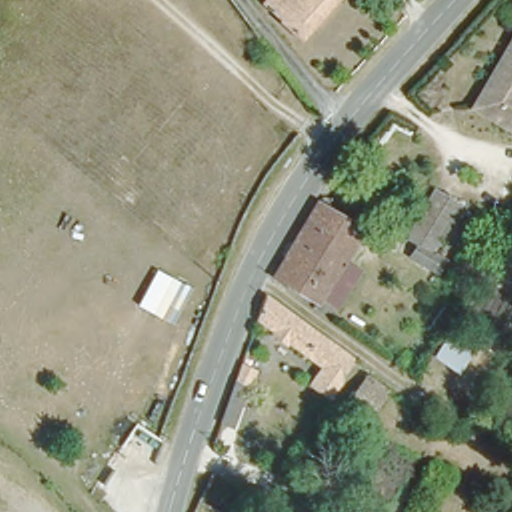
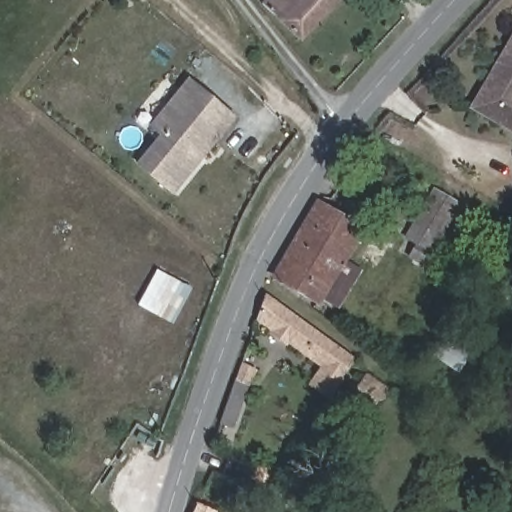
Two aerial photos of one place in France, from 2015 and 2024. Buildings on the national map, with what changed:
unchanged [(297,30),(266,0),(325,0),(310,16),(297,30)]
unchanged [(511,20),(512,21),(512,132),(465,105),(511,20)]
new [(148,125),(187,76),(237,116),(171,195),(134,165),(159,135),(148,125)]
unchanged [(458,250),(448,265),(418,244),(426,232),(420,228),(432,210),(443,195),(467,210),(457,225),(445,241),(458,250)]
unchanged [(332,210),(374,234),(330,305),(287,278),(332,210)]
unchanged [(372,262),(383,270),(370,288),(359,280),(372,262)]
new [(172,326),(136,305),(156,269),(192,287),(172,326)]
unchanged [(347,359),(327,391),(313,382),(320,371),(248,323),(259,295),(347,359)]
unchanged [(461,406),(445,395),(431,385),(438,374),(447,361),(448,360),(441,355),(449,341),(456,346),(458,348),(468,355),(470,357),(464,367),(480,379),(461,406)]
unchanged [(220,411),(231,380),(237,365),(249,372),(243,387),(232,417),(220,411)]
unchanged [(376,383),(396,399),(392,405),(388,410),(386,413),(377,425),(363,415),(356,409),(376,383)]
demolished [(164,470),(131,447),(146,426),(172,443),(164,470)]

